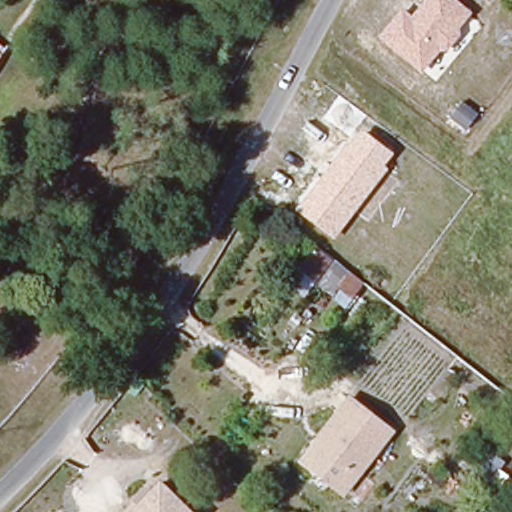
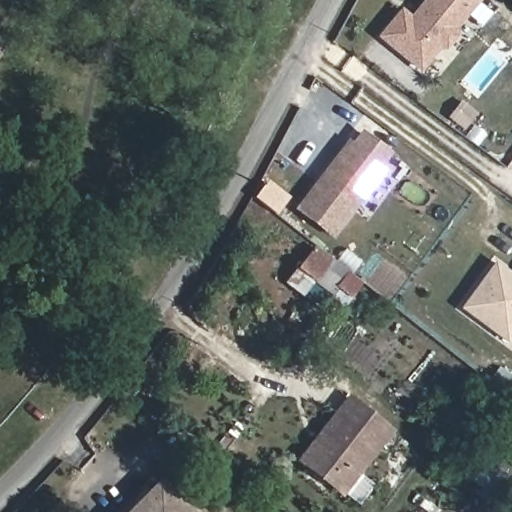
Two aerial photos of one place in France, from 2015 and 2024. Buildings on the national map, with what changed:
unchanged [(459,27),(461,34),(445,52),(437,51),(418,74),(380,39),(402,10),(412,19),(428,0),(457,0),(472,14),(459,27)]
unchanged [(0,55),(0,53),(1,54),(0,55)]
unchanged [(383,165),(388,169),(331,238),(297,211),(361,125),(392,152),(383,165)]
unchanged [(364,283),(343,311),(326,302),(321,308),(289,287),(313,246),(364,283)]
new [(509,343),(460,308),(495,260),(512,273),(512,339),(509,343)]
unchanged [(299,462),(349,396),(396,432),(344,497),(299,462)]
unchanged [(188,512),(128,512),(158,481),(188,512)]

